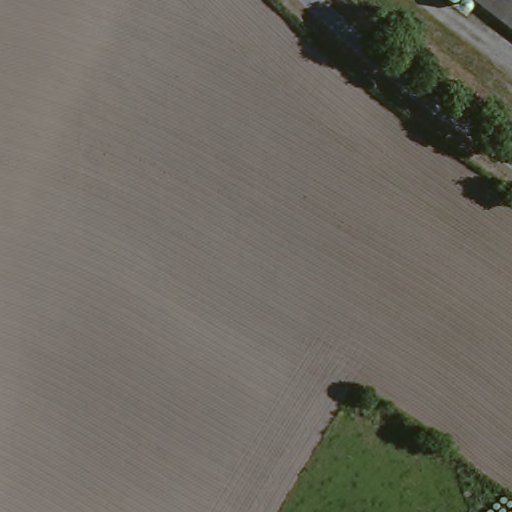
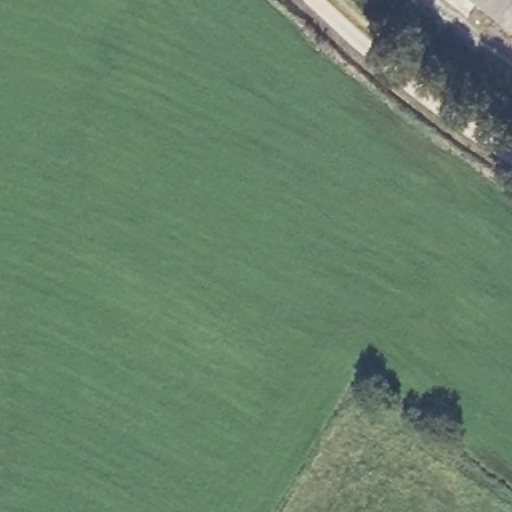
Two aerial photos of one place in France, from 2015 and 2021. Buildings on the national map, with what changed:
unchanged [(487,0),(512,0),(512,19),(487,0)]

